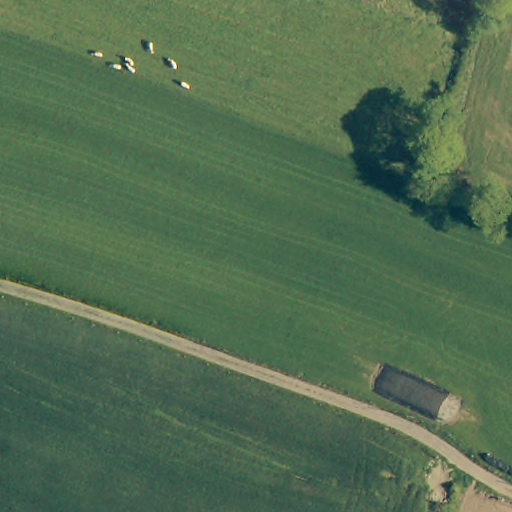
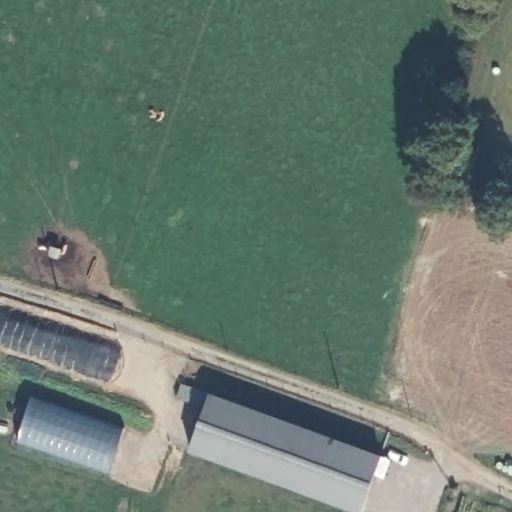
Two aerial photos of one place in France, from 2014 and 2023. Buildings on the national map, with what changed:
new [(385,478),(376,473),(362,512),(357,512),(189,451),(207,406),(177,397),(182,383),(212,392),(382,455),(392,459),(385,478)]

